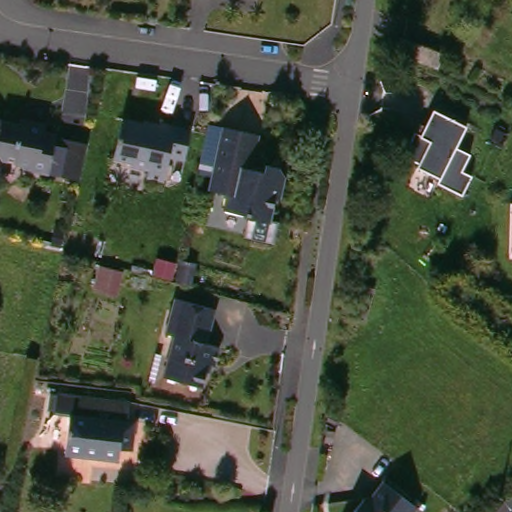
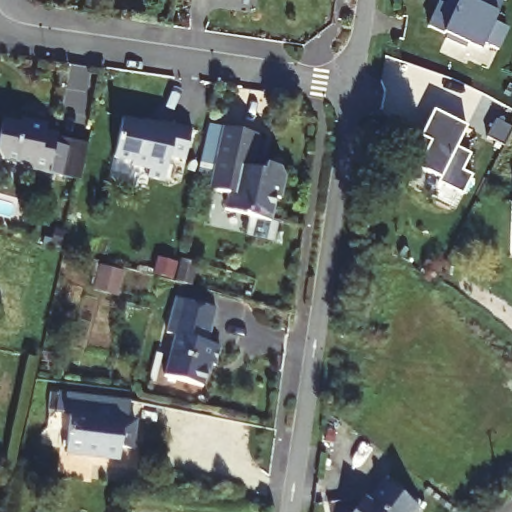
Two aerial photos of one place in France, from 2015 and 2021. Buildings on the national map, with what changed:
new [(450,0),(503,0),(492,24),(507,31),(498,51),(483,44),(481,49),(468,43),(465,49),(446,40),(447,36),(428,28),(439,4),(446,8),(450,0)]
demolished [(443,55),(438,70),(413,61),(418,46),(443,55)]
unchanged [(438,183),(441,178),(412,161),(434,111),(467,127),(457,148),(470,155),(462,172),(471,177),(462,195),(438,183)]
unchanged [(189,156),(174,153),(169,177),(151,173),(154,166),(135,161),(136,158),(118,154),(127,113),(163,121),(164,117),(196,124),(189,156)]
unchanged [(70,176),(53,172),(29,166),(25,161),(6,157),(0,147),(7,118),(24,121),(30,118),(51,122),(50,130),(61,132),(59,143),(76,146),(70,176)]
unchanged [(266,129),(259,163),(273,166),(274,159),(288,162),(294,171),(289,194),(284,192),(278,217),(257,212),(254,207),(234,202),(237,189),(224,186),(230,159),(224,157),(232,121),(266,129)]
unchanged [(187,256),(203,260),(195,288),(179,284),(187,256)]
new [(99,267),(121,273),(116,292),(94,286),(99,267)]
unchanged [(224,306),(215,340),(228,343),(223,362),(217,361),(211,384),(173,373),(183,333),(174,330),(184,295),(224,306)]
unchanged [(130,400),(128,423),(136,424),(133,448),(119,446),(117,466),(68,460),(72,417),(58,414),(60,391),(130,400)]
unchanged [(423,505),(417,512),(359,512),(371,497),(375,500),(389,480),(423,505)]

